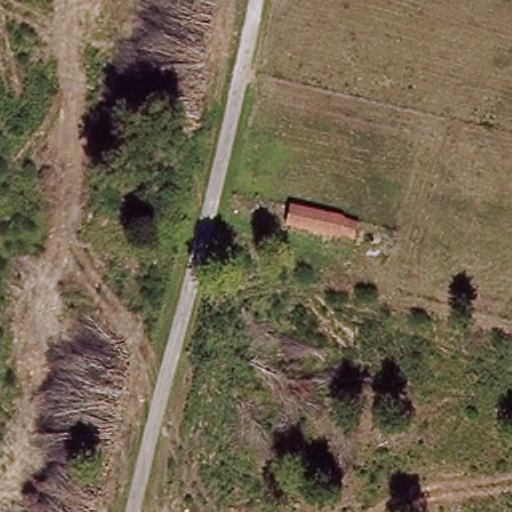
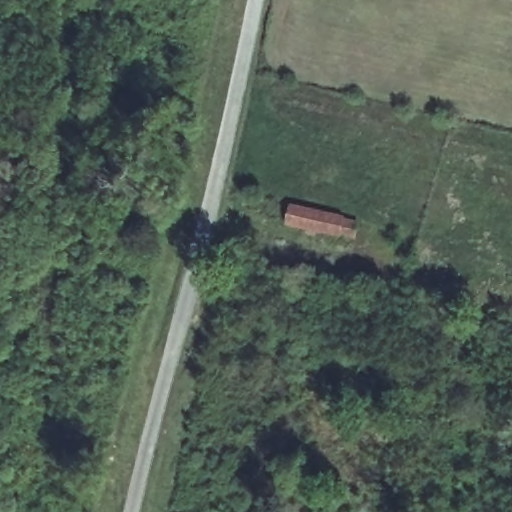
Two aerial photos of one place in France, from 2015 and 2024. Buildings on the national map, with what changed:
unchanged [(349,214),(344,238),(289,224),(295,204),(349,214)]

